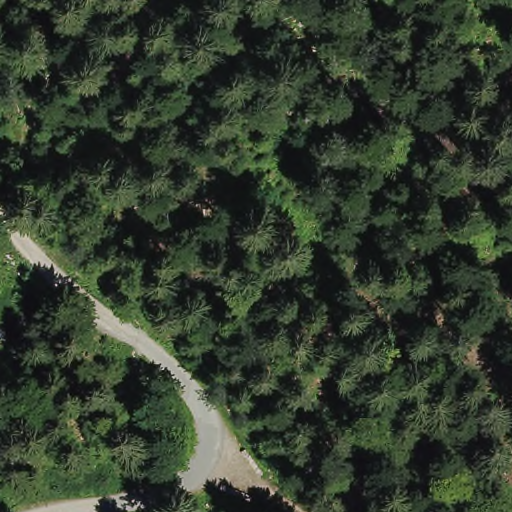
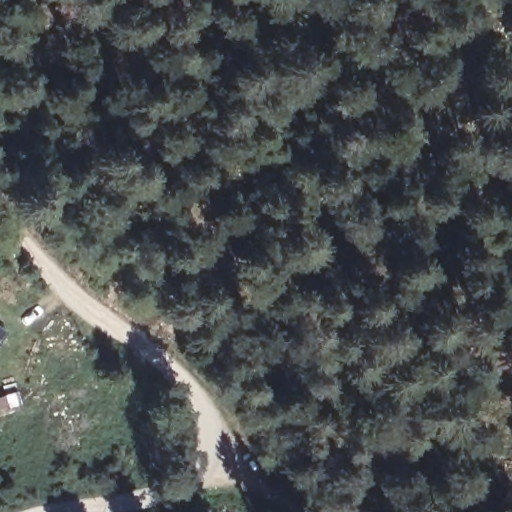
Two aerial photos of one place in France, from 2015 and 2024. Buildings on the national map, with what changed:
unchanged [(0,338),(5,343),(0,347),(0,338)]

